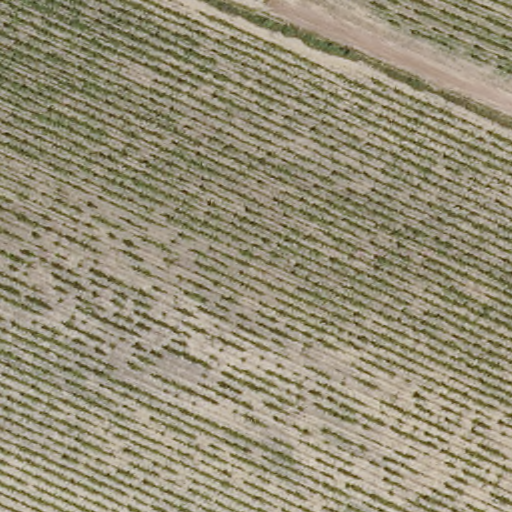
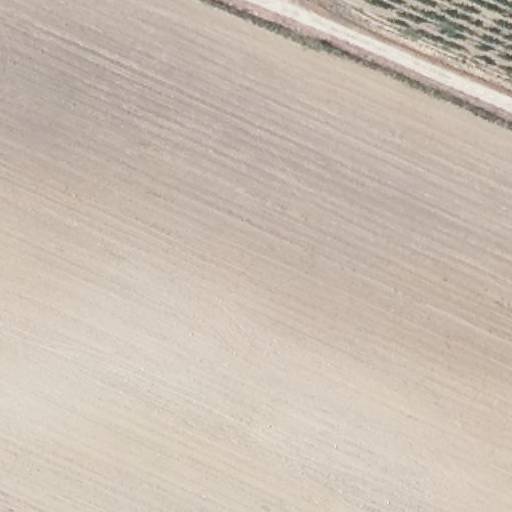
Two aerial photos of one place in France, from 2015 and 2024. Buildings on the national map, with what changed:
[]

